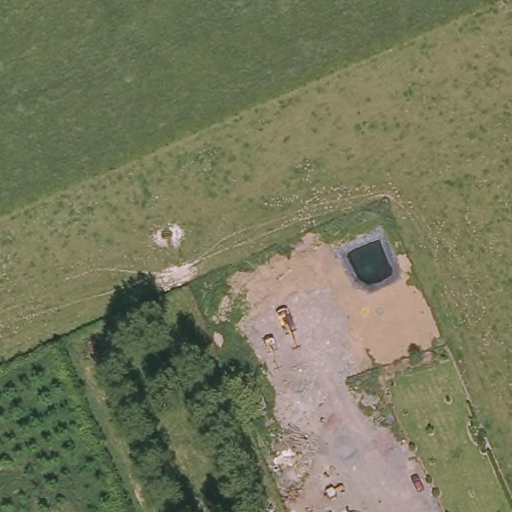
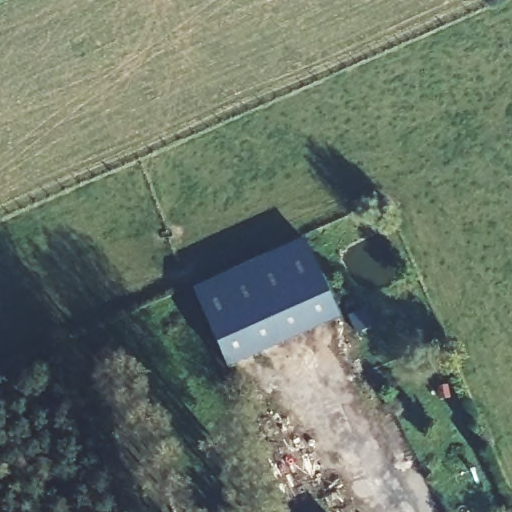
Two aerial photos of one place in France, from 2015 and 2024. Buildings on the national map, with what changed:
new [(228,370),(192,290),(305,239),(340,320),(228,370)]

